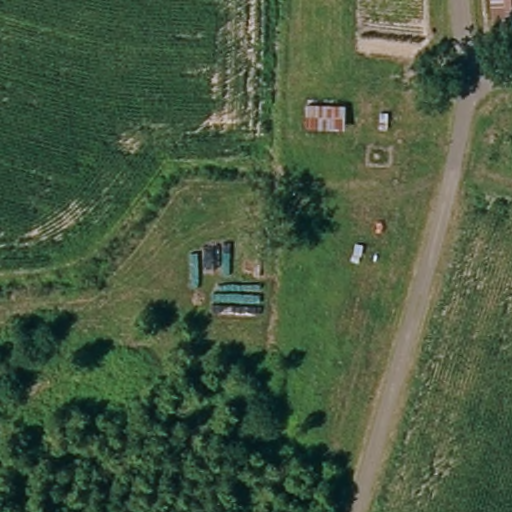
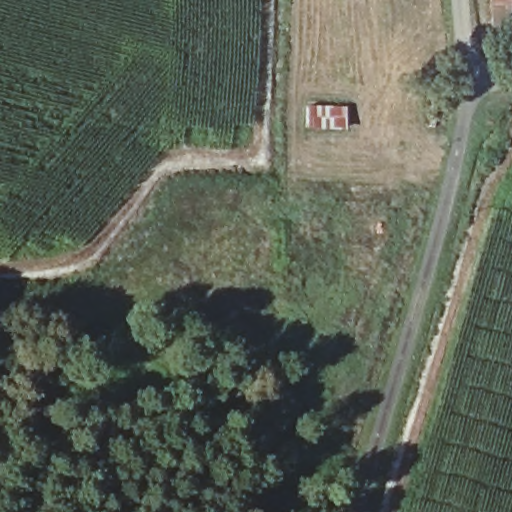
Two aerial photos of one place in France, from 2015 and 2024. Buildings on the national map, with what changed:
unchanged [(509,20),(485,20),(485,0),(509,0),(509,20)]

